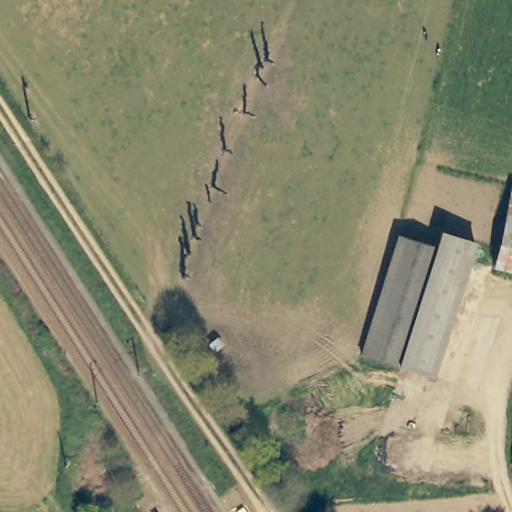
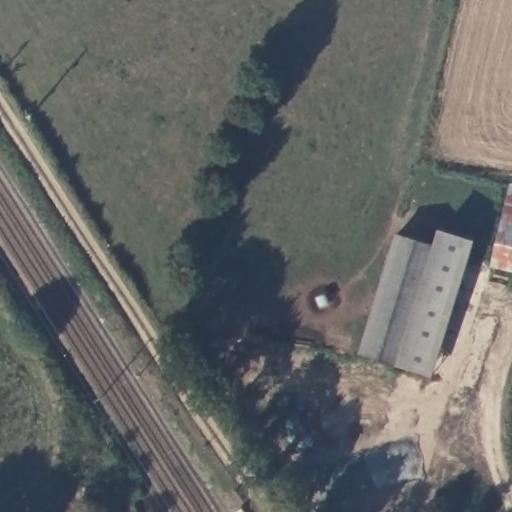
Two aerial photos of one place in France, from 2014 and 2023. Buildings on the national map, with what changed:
unchanged [(512,269),(492,264),(510,183),(512,184),(512,269)]
unchanged [(431,377),(361,357),(397,237),(436,248),(440,232),(474,244),(431,377)]

